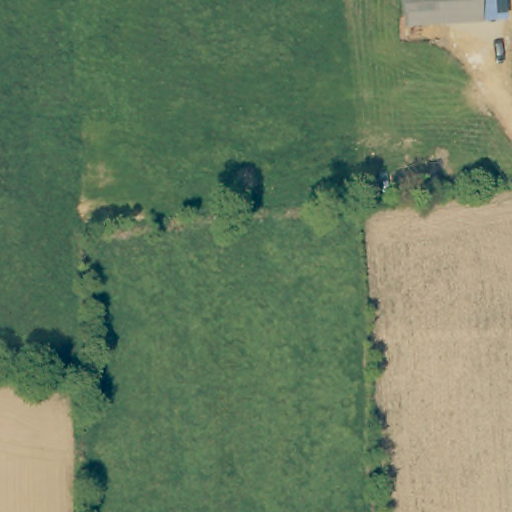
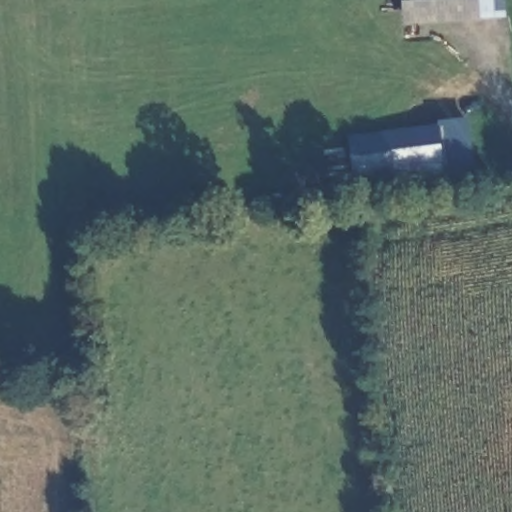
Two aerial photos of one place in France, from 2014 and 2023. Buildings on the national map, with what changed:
unchanged [(503,0),(505,18),(402,25),(401,0),(503,0)]
new [(476,181),(355,196),(347,135),(468,120),(476,181)]

